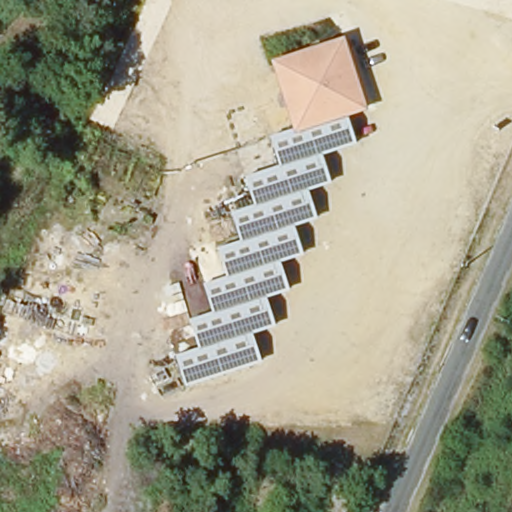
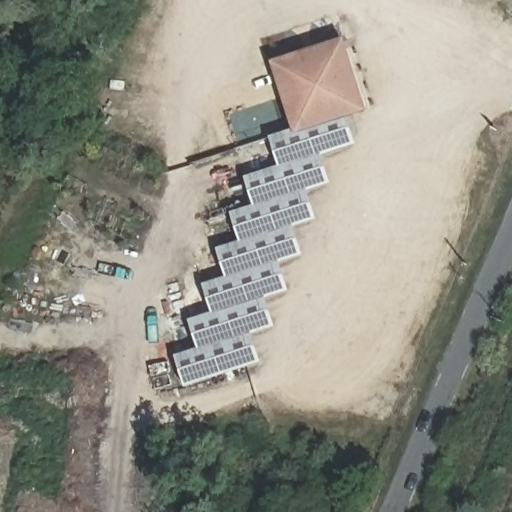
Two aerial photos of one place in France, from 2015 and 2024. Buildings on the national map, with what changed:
unchanged [(346,43),(366,110),(347,116),(297,132),(296,127),(274,63),(346,43)]
unchanged [(200,347),(190,320),(213,312),(205,285),(227,277),(217,247),(241,241),(230,211),(255,204),(244,175),(280,166),(270,135),(296,127),(297,132),(347,116),(358,144),(323,156),(332,185),(310,192),(318,219),(296,226),(305,255),(281,263),(290,290),(267,298),(276,326),(254,333),(261,361),(185,386),(176,355),(200,347)]

